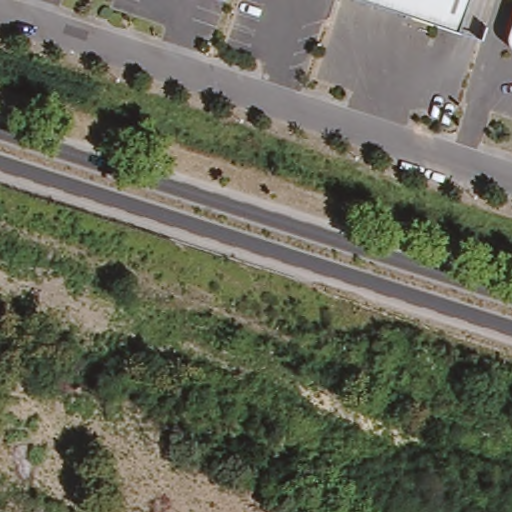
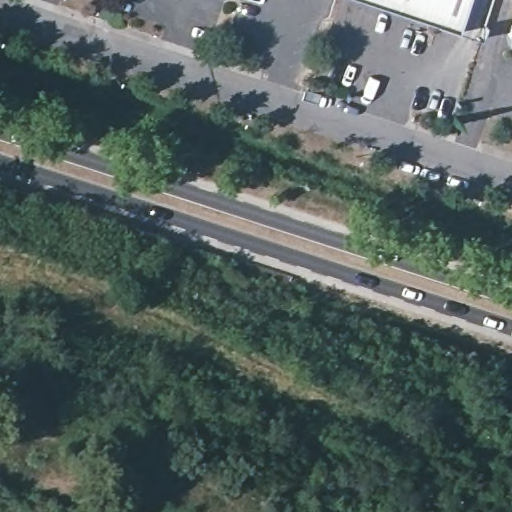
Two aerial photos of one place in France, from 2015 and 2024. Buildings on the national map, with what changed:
unchanged [(476,39),(452,31),(356,0),(462,0),(457,17),(481,25),(476,39)]
unchanged [(512,51),(507,48),(504,44),(503,40),(504,36),(512,10),(512,51)]

